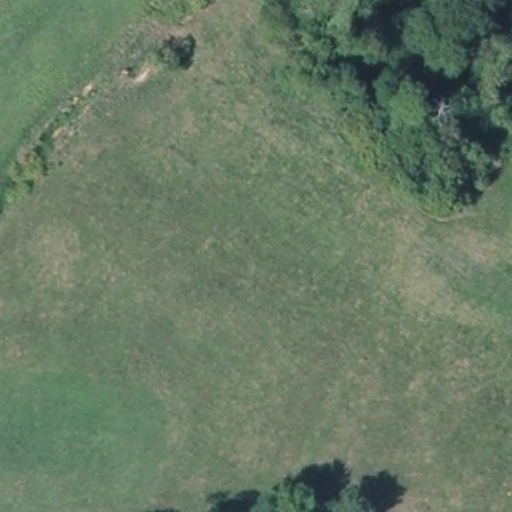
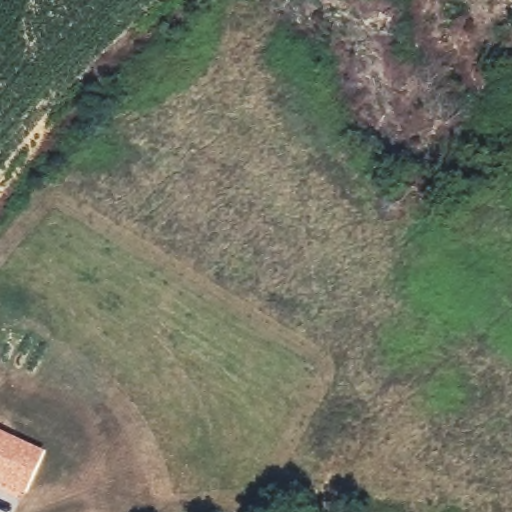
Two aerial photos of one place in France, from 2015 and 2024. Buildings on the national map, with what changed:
new [(22,436),(47,450),(27,493),(0,481),(0,434),(19,443),(22,436)]

